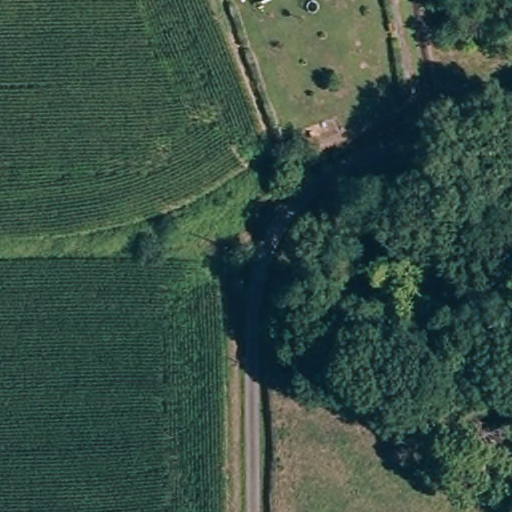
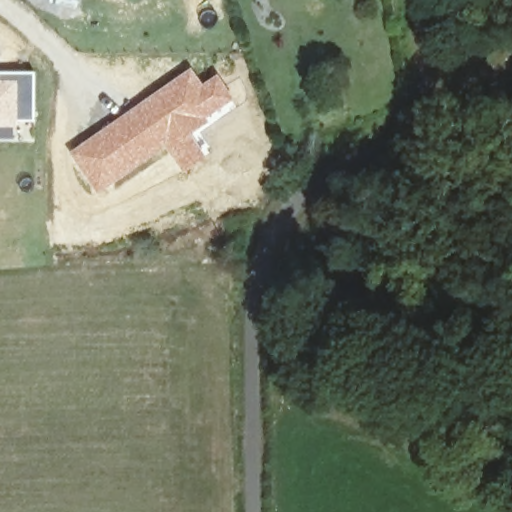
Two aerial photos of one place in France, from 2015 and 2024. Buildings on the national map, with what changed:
new [(191,68),(203,84),(217,74),(237,103),(194,134),(207,155),(184,171),(167,149),(97,193),(70,151),(191,68)]
new [(35,71),(34,121),(16,121),(16,128),(0,130),(0,71),(35,71)]

